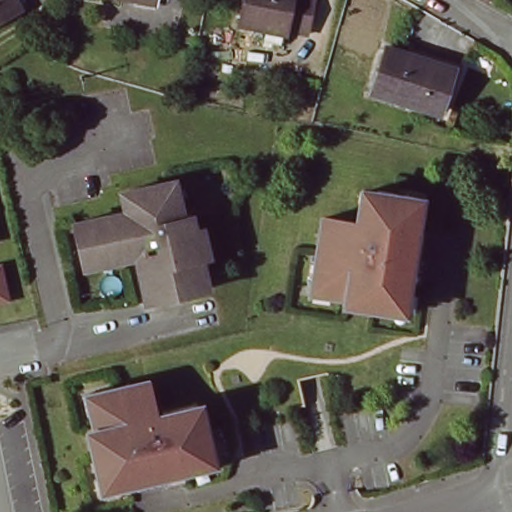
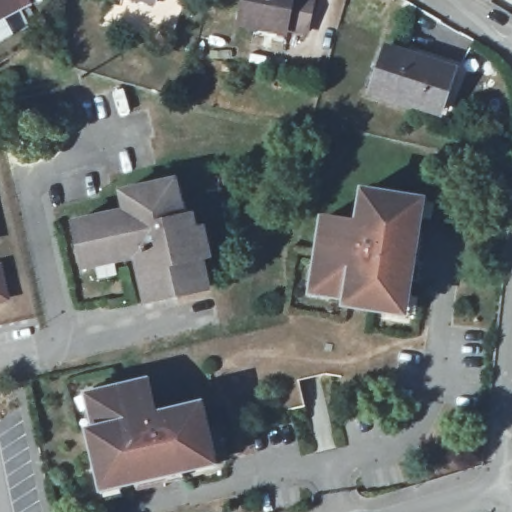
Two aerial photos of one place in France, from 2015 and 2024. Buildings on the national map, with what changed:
unchanged [(18,8),(0,17),(0,0),(14,0),(18,8)]
unchanged [(153,1),(147,0),(153,0),(153,1)]
unchanged [(243,0),(310,0),(305,29),(284,25),(283,31),(240,22),(243,0)]
unchanged [(386,49),(451,73),(436,115),(371,91),(386,49)]
unchanged [(59,105),(74,100),(77,109),(63,114),(59,105)]
unchanged [(203,287),(142,303),(131,261),(78,272),(66,223),(120,210),(116,192),(169,179),(177,212),(185,210),(188,225),(198,223),(207,254),(197,256),(193,257),(203,287)]
unchanged [(402,308),(346,297),(346,293),(331,291),(312,287),(314,280),(324,228),(327,229),(331,212),(361,218),(367,189),(384,192),(385,187),(424,195),(430,196),(427,215),(421,246),(418,259),(416,259),(413,273),(415,274),(412,289),(408,309),(402,308)]
unchanged [(5,298),(0,299),(0,278),(0,281),(5,298)]
unchanged [(99,484),(86,429),(93,427),(90,413),(85,393),(92,392),(131,383),(131,388),(148,384),(156,418),(163,417),(162,411),(197,403),(201,420),(206,419),(215,457),(216,464),(196,468),(181,472),(181,470),(163,474),(163,476),(150,479),(120,486),(100,491),(99,484)]

